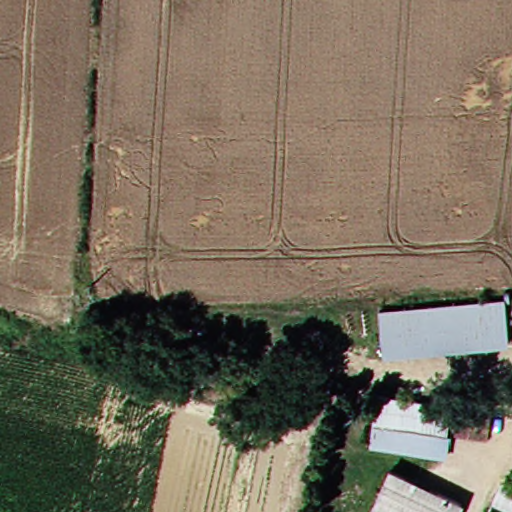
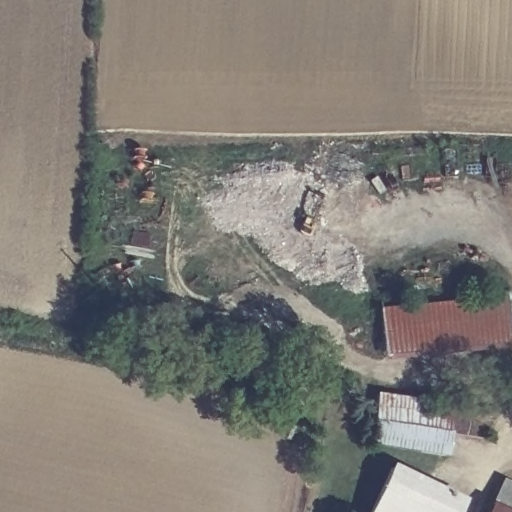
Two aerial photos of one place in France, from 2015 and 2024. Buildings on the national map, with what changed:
unchanged [(501,342),(377,356),(371,308),(498,296),(501,342)]
unchanged [(481,432),(442,425),(437,450),(364,439),(369,391),(482,407),(481,432)]
unchanged [(363,512),(385,467),(458,502),(453,512),(363,512)]
unchanged [(512,490),(512,512),(510,512),(485,498),(493,481),(512,490)]
unchanged [(479,512),(485,498),(510,512),(479,512)]

